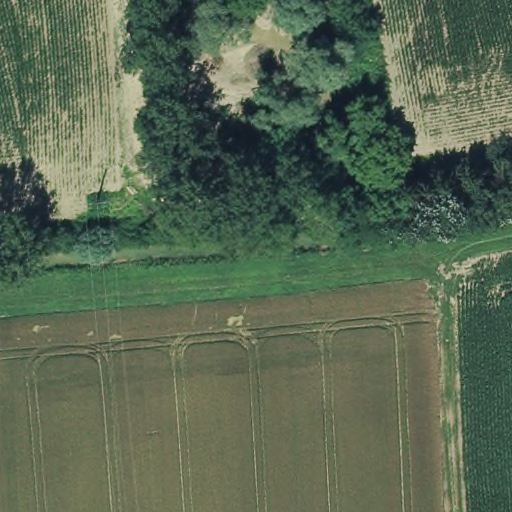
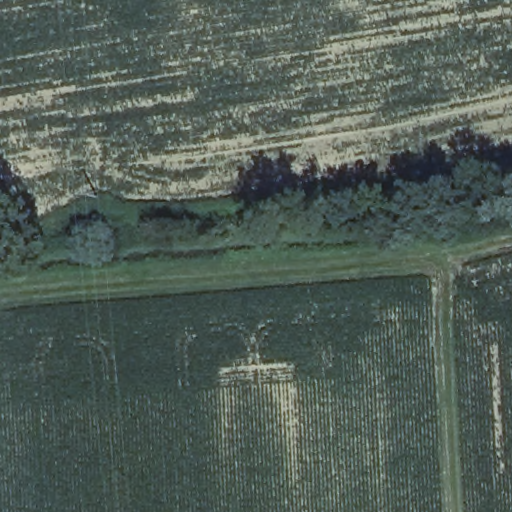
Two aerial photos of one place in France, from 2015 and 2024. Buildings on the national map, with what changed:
unchanged [(273,193),(228,191),(229,150),(274,151),(273,193)]

